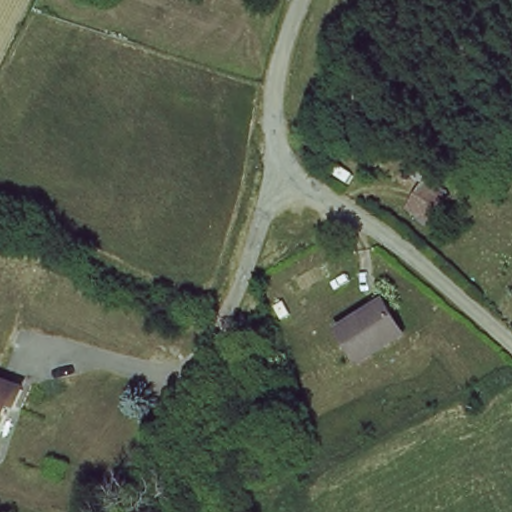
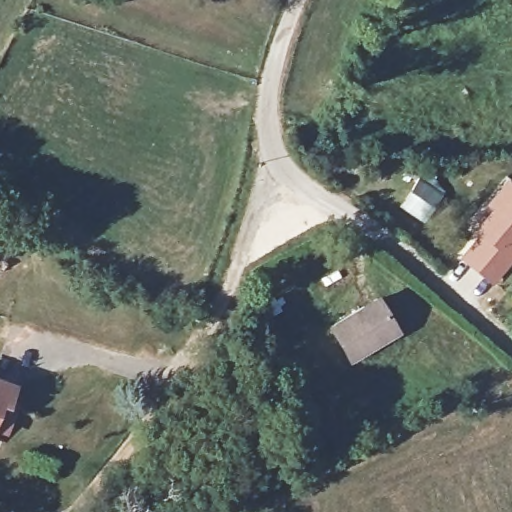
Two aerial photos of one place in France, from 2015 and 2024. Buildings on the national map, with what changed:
unchanged [(404,211),(429,167),(451,187),(429,225),(404,211)]
new [(472,237),(467,231),(507,177),(512,182),(512,263),(494,286),(457,257),(472,237)]
unchanged [(334,327),(379,299),(398,333),(353,357),(334,327)]
unchanged [(10,406),(4,403),(0,414),(0,383),(17,389),(10,406)]

